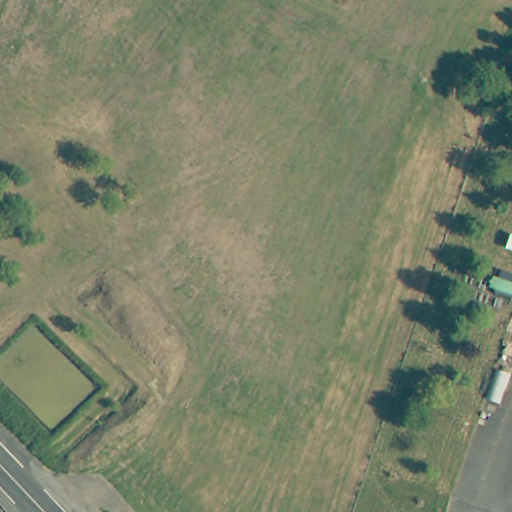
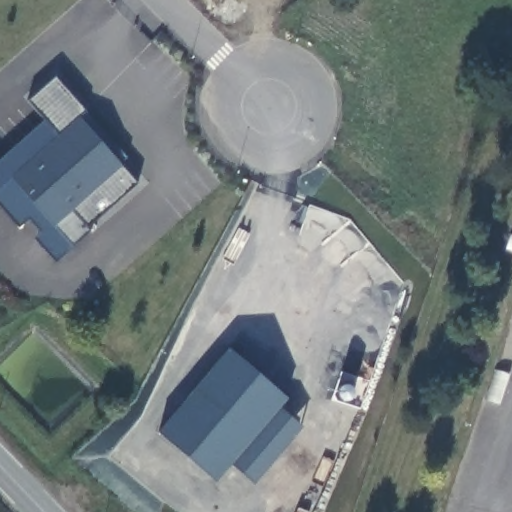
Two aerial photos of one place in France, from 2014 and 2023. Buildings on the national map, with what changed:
new [(128,157),(122,165),(138,183),(88,227),(91,231),(56,262),(35,238),(42,231),(29,217),(19,228),(0,207),(0,160),(46,121),(28,102),(56,78),(86,111),(128,157)]
unchanged [(512,240),(512,252),(509,251),(512,240)]
new [(159,431),(228,348),(289,397),(280,407),(303,426),(256,482),(232,463),(216,480),(159,431)]

